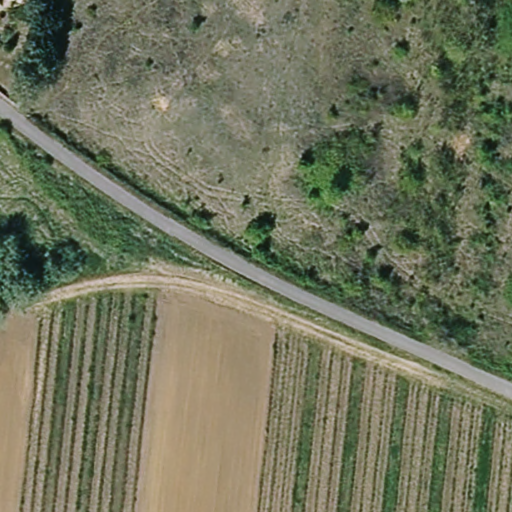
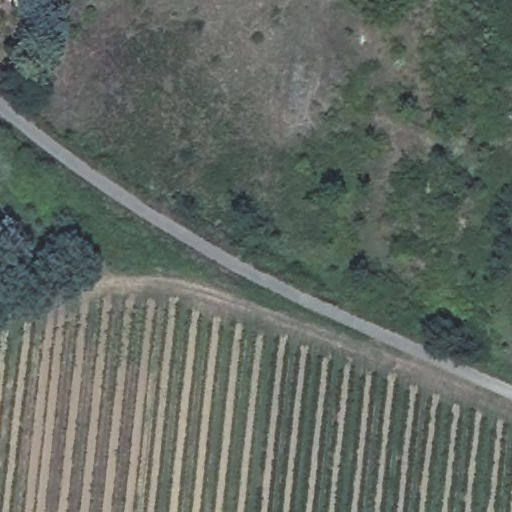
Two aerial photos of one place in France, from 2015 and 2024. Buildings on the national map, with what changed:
[]

